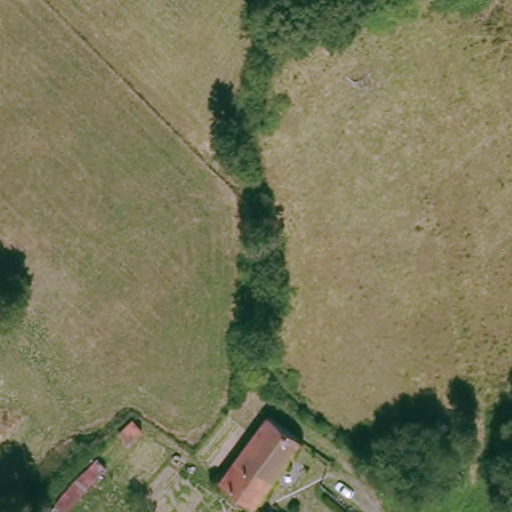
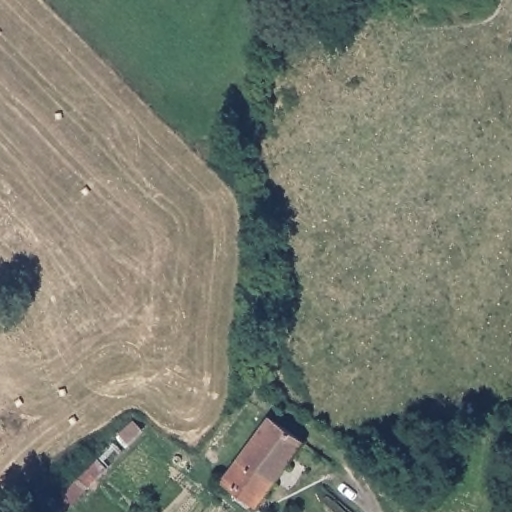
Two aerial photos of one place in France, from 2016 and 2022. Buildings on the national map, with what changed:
unchanged [(269,412),(302,436),(256,501),(223,477),(269,412)]
unchanged [(143,430),(129,443),(120,434),(133,421),(143,430)]
unchanged [(55,503),(97,459),(106,468),(66,512),(64,512),(55,503)]

